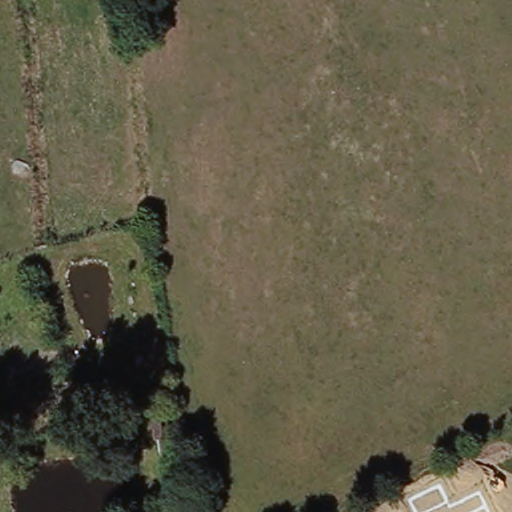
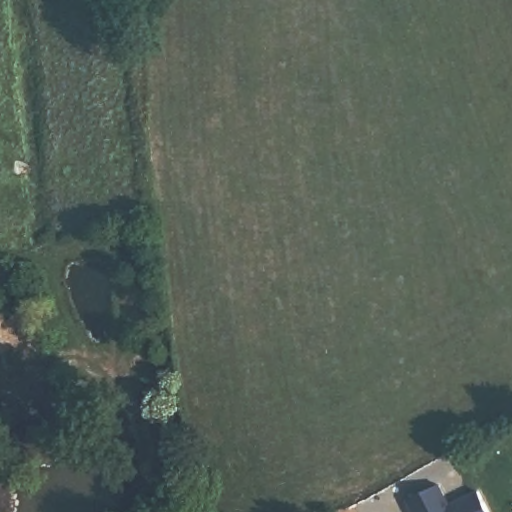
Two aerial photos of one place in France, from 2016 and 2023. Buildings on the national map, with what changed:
new [(408,500),(438,485),(449,506),(478,492),(488,512),(414,512),(408,500)]

